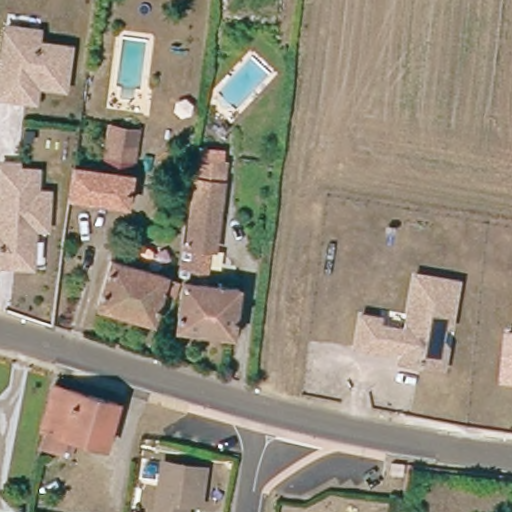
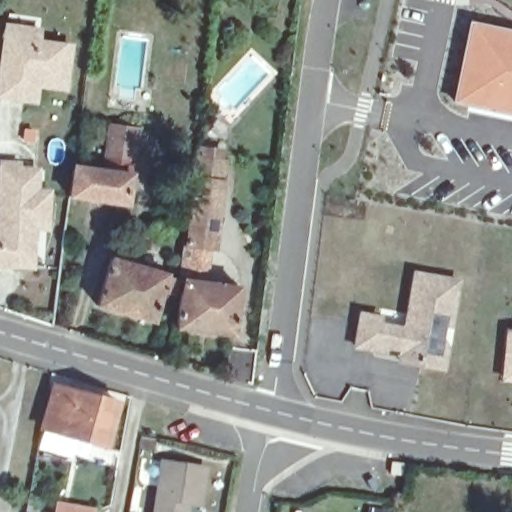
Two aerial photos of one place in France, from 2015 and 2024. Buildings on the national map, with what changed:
new [(451,96),(466,16),(512,25),(512,108),(451,96)]
unchanged [(0,99),(0,48),(2,33),(35,37),(34,44),(66,48),(61,90),(33,86),(31,103),(15,101),(0,99)]
unchanged [(135,156),(108,152),(112,125),(139,129),(135,156)]
unchanged [(197,162),(227,165),(215,252),(212,252),(208,287),(241,292),(234,341),(177,332),(184,283),(179,283),(184,248),(185,248),(197,162)]
unchanged [(128,174),(123,204),(66,196),(71,165),(128,174)]
unchanged [(0,167),(16,168),(15,174),(34,174),(33,194),(46,195),(43,232),(31,231),(29,269),(0,267),(0,167)]
unchanged [(154,327),(99,310),(113,263),(179,283),(174,299),(163,296),(154,327)]
unchanged [(397,357),(400,345),(383,342),(382,348),(354,342),(359,310),(378,314),(377,321),(398,325),(410,318),(411,311),(406,310),(414,270),(456,278),(448,323),(446,336),(444,344),(440,365),(419,361),(397,357)]
unchanged [(502,376),(507,329),(512,330),(512,377),(502,376)]
unchanged [(52,384),(115,402),(102,446),(40,428),(52,384)]
unchanged [(156,462),(198,468),(194,494),(181,492),(178,512),(148,512),(156,462)]
unchanged [(402,476),(389,474),(391,462),(404,464),(402,476)]

